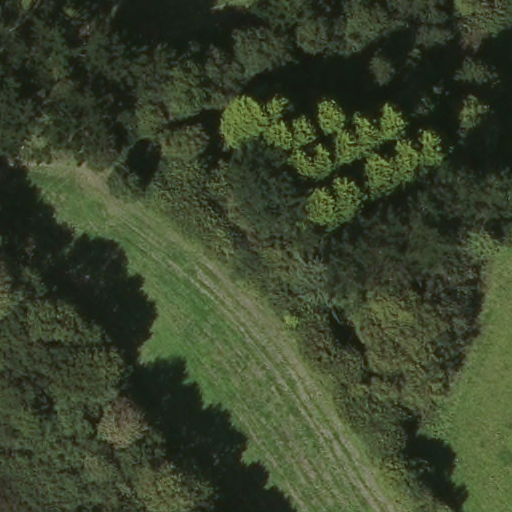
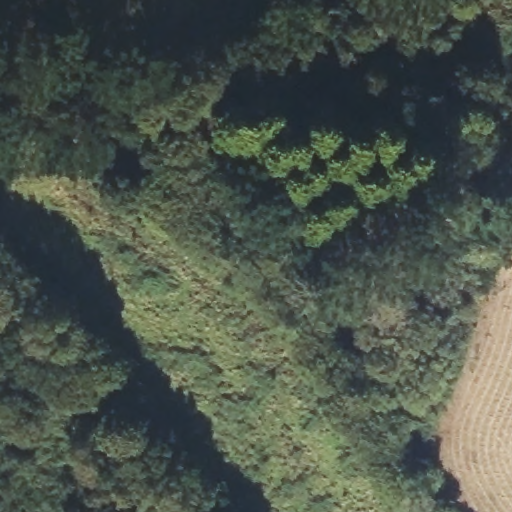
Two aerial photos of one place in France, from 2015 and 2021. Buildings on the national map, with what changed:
[]

